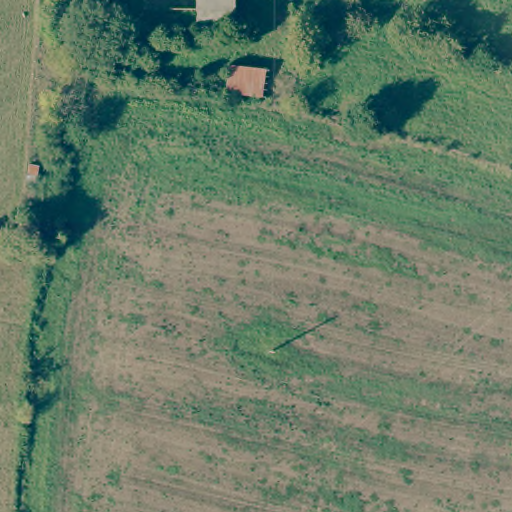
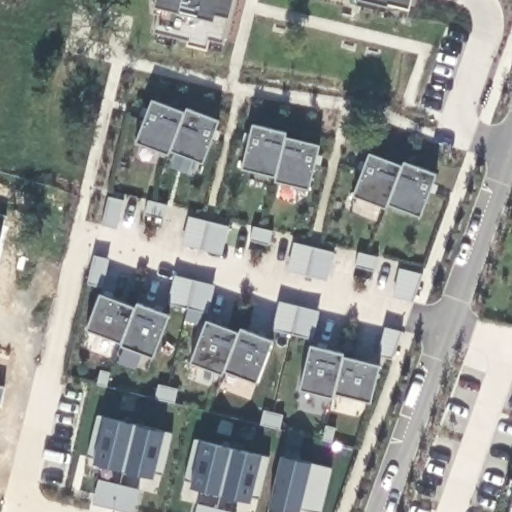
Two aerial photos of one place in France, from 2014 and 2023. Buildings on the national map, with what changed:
new [(222,41),(210,39),(207,49),(187,44),(187,39),(154,30),(158,5),(154,4),(155,0),(232,0),(227,16),(222,41)]
demolished [(237,22),(167,24),(166,0),(236,0),(237,1),(237,22)]
new [(388,3),(387,5),(368,0),(410,0),(408,9),(388,3)]
demolished [(300,66),(296,99),(271,96),(271,91),(230,87),(232,59),(300,66)]
new [(202,164),(169,150),(168,154),(137,141),(152,100),(184,113),(187,109),(219,121),(202,164)]
new [(308,189),(275,181),(277,177),(243,169),(253,125),(286,134),(285,138),(318,146),(308,189)]
new [(420,216),(387,204),(386,208),(354,195),(368,154),(402,166),(403,163),(435,175),(420,216)]
new [(291,242),(311,246),(303,274),(283,270),(291,242)]
new [(395,265),(419,271),(409,299),(388,294),(395,265)]
new [(153,358),(120,344),(121,343),(86,329),(100,294),(135,308),(137,304),(168,315),(153,358)]
new [(256,383),(224,371),(222,374),(191,363),(207,321),(238,333),(240,329),(272,341),(256,383)]
new [(312,346),(343,354),(342,357),(377,366),(370,402),(333,393),(332,397),(301,389),(312,346)]
new [(162,474),(155,473),(153,479),(124,471),(92,463),(89,457),(97,418),(105,418),(165,432),(172,434),(162,474)]
new [(259,500),(250,502),(189,487),(184,483),(194,440),(200,441),(262,456),(269,459),(259,500)]
new [(321,512),(315,512),(301,509),(300,512),(293,512),(269,507),(281,457),(312,464),(332,469),(321,512)]
new [(512,503),(512,512),(510,512),(512,503)]

